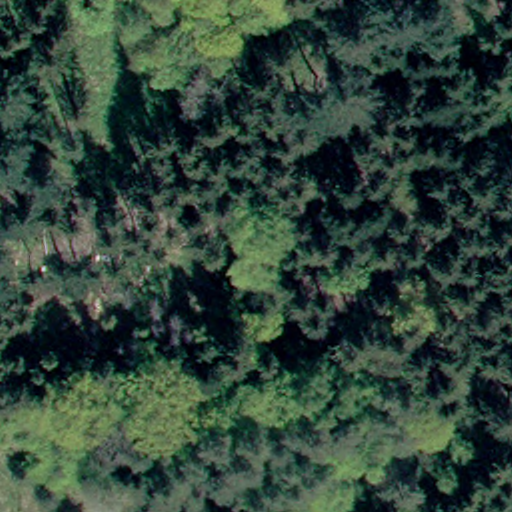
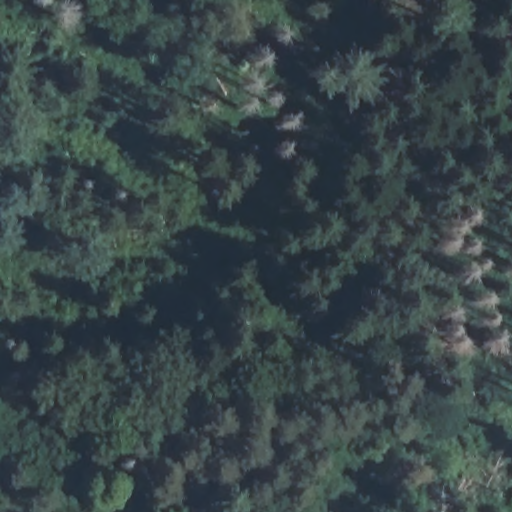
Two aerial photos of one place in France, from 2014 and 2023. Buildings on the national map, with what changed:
unchanged [(100,8),(79,0),(103,0),(100,8)]
unchanged [(271,22),(256,68),(228,58),(220,83),(190,74),(212,2),(271,22)]

